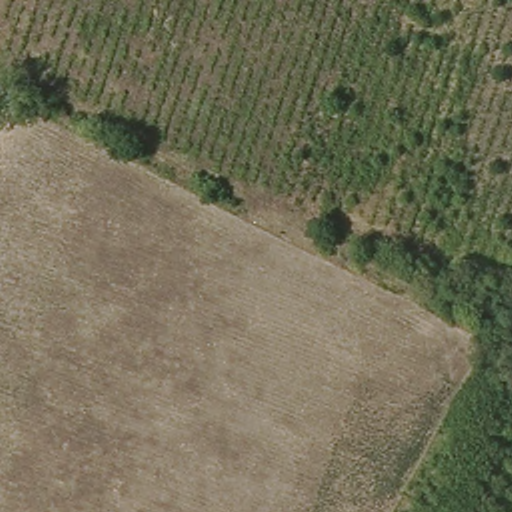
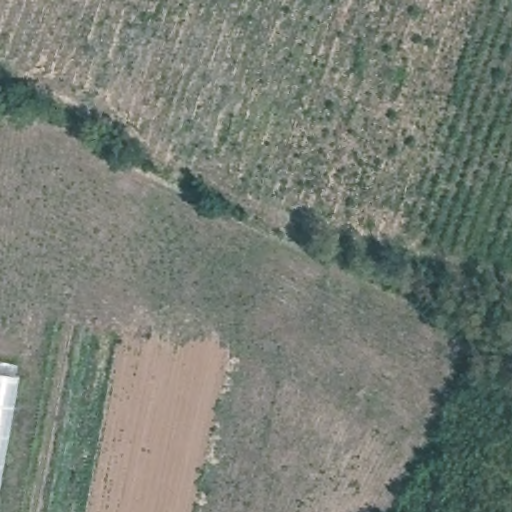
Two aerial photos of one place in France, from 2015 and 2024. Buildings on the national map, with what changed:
unchanged [(20,113),(4,121),(0,111),(0,101),(11,96),(20,113)]
new [(18,375),(0,483),(0,371),(18,375)]

